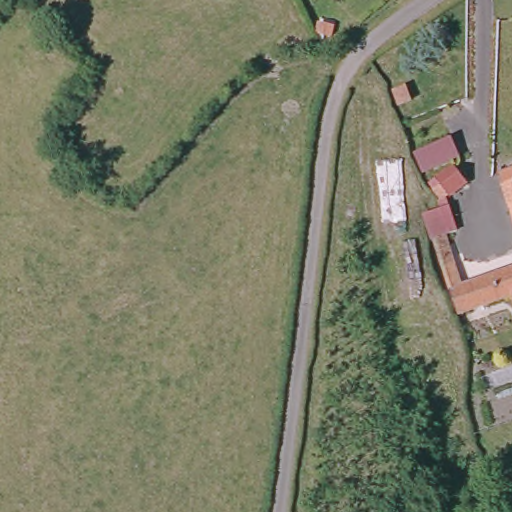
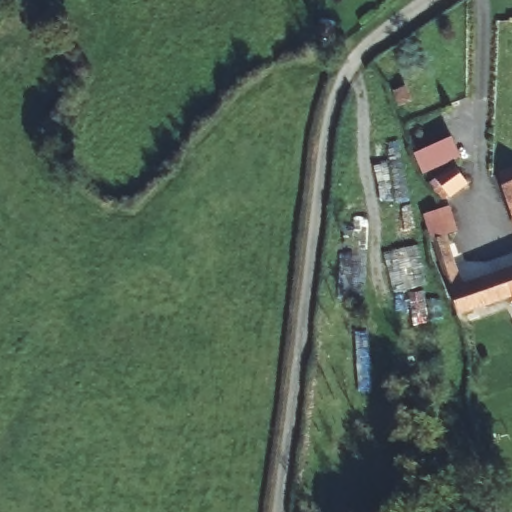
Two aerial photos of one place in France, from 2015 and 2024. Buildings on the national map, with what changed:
unchanged [(448,149),(430,161),(425,153),(419,141),(437,130),(446,145),(448,149)]
unchanged [(506,167),(512,164),(512,179),(506,167)]
unchanged [(432,209),(422,193),(460,171),(463,178),(468,188),(448,204),(457,235),(450,239),(456,274),(447,279),(436,241),(430,244),(422,213),(432,209)]
unchanged [(507,303),(468,320),(447,279),(456,274),(466,294),(512,272),(512,313),(507,303)]

